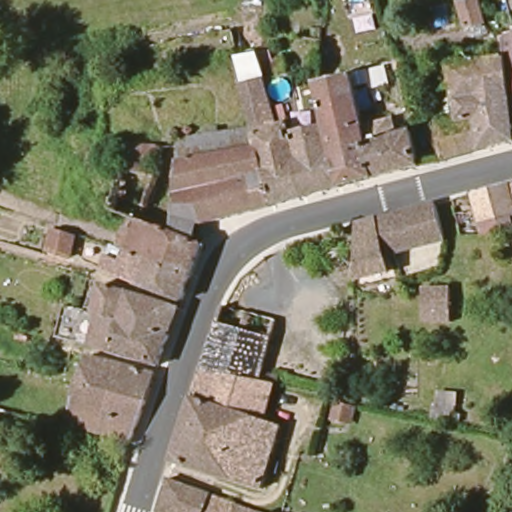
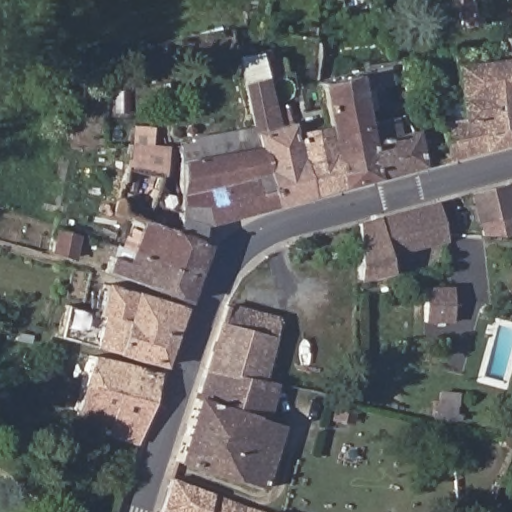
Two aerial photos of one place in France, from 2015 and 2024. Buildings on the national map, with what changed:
unchanged [(488,16),(490,19),(470,24),(465,0),(485,0),(485,4),(488,16)]
unchanged [(511,37),(512,37),(512,50),(511,37)]
unchanged [(282,49),(291,72),(298,71),(302,85),(323,80),(333,132),(345,186),(310,196),(293,125),(283,126),(263,52),(282,49)]
unchanged [(469,50),(470,63),(499,59),(499,50),(506,50),(507,57),(512,57),(512,141),(451,158),(444,122),(455,121),(452,99),(462,97),(457,52),(469,50)]
unchanged [(392,66),(396,85),(375,89),(374,82),(360,85),(368,125),(333,132),(323,80),(358,74),(392,66)]
unchanged [(293,125),(310,196),(277,204),(257,127),(246,75),(254,74),(256,83),(264,82),(273,129),(283,126),(293,125)]
unchanged [(368,125),(397,119),(400,134),(372,140),(379,177),(345,186),(333,132),(368,125)]
unchanged [(209,244),(198,275),(196,274),(190,272),(135,251),(127,248),(137,217),(120,209),(132,144),(169,145),(197,142),(196,137),(257,127),(277,204),(241,214),(208,223),(202,241),(209,244)]
unchanged [(425,165),(379,177),(372,140),(400,134),(419,130),(425,165)]
unchanged [(507,234),(488,234),(478,194),(498,189),(512,185),(512,232),(507,234)]
unchanged [(455,239),(399,252),(391,217),(447,204),(455,239)]
unchanged [(399,252),(367,260),(367,224),(391,217),(399,252)]
unchanged [(76,236),(73,256),(51,250),(55,230),(76,236)]
unchanged [(109,270),(116,255),(131,260),(135,251),(190,272),(196,274),(198,275),(189,301),(109,270)]
unchanged [(59,328),(65,330),(71,308),(72,304),(102,311),(110,283),(186,308),(166,364),(57,335),(59,328)]
unchanged [(458,288),(460,322),(432,322),(431,290),(458,288)]
unchanged [(210,368),(229,305),(281,320),(266,380),(210,368)]
unchanged [(90,382),(99,355),(162,375),(153,402),(90,382)]
unchanged [(268,418),(287,425),(267,487),(181,461),(210,368),(266,380),(281,382),(268,418)]
unchanged [(77,422),(88,388),(90,382),(153,402),(139,443),(77,422)]
unchanged [(414,416),(416,398),(442,401),(443,389),(467,392),(465,422),(414,416)]
unchanged [(352,419),(335,415),(339,402),(355,406),(352,419)]
unchanged [(185,483),(262,512),(177,512),(185,483)]

